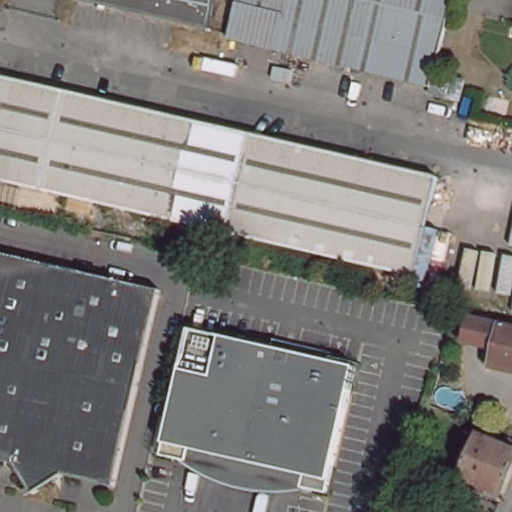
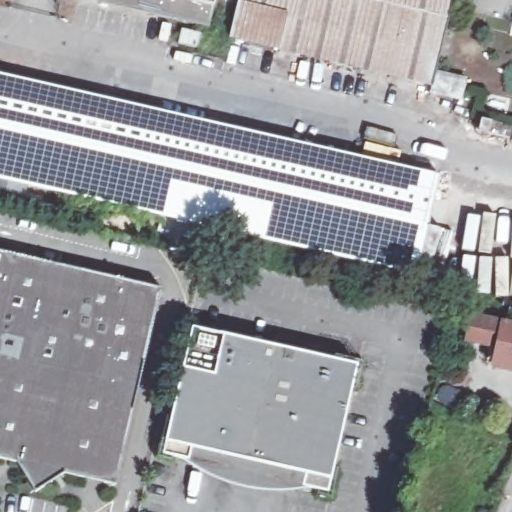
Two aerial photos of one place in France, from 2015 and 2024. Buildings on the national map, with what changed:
unchanged [(212,0),(206,29),(78,0),(212,0)]
unchanged [(457,78),(456,81),(454,89),(451,101),(426,95),(429,85),(231,38),(240,0),(444,0),(428,70),(457,78)]
unchanged [(0,179),(0,76),(439,176),(417,274),(0,179)]
unchanged [(119,486),(66,473),(38,493),(20,463),(0,458),(0,250),(165,288),(119,486)]
unchanged [(477,340),(483,317),(512,324),(512,366),(504,364),(497,362),(500,347),(477,340)]
unchanged [(333,479),(296,489),(269,492),(232,489),(192,472),(166,447),(191,329),(358,366),(333,479)]
demolished [(488,434),(494,437),(491,442),(512,452),(512,489),(507,502),(466,483),(467,481),(482,448),(488,434)]

